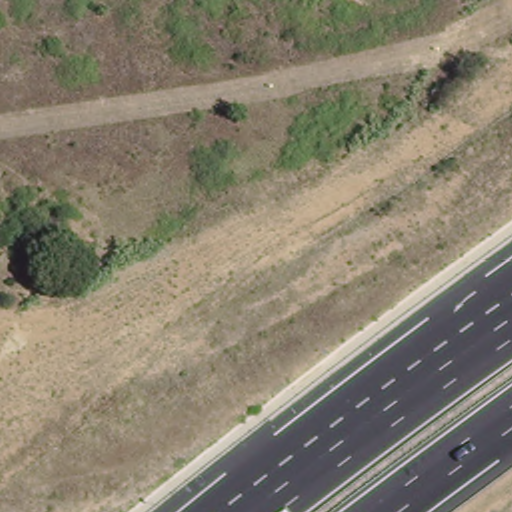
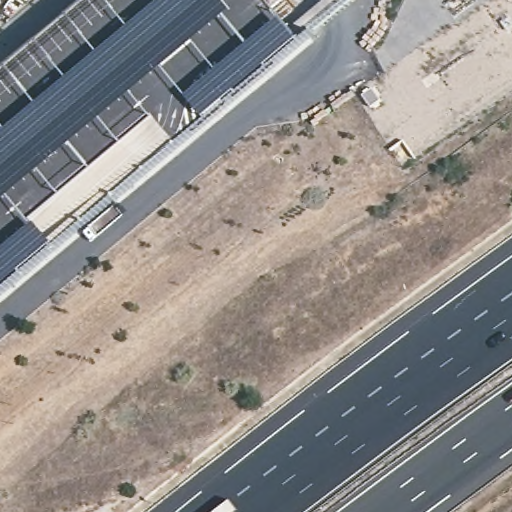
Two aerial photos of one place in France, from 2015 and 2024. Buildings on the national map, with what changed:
new [(207,120),(53,248),(0,292),(0,77),(92,0),(263,0),(299,44),(207,120)]

